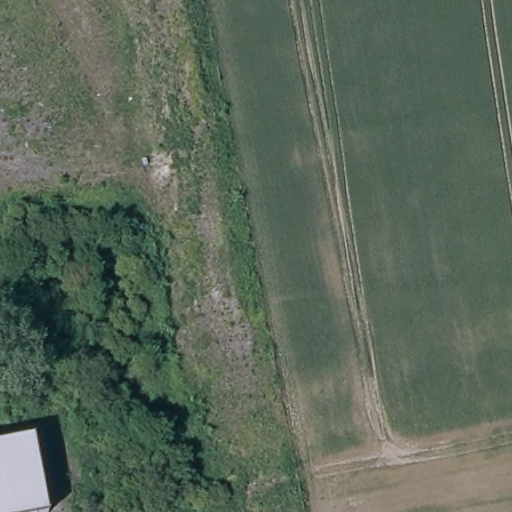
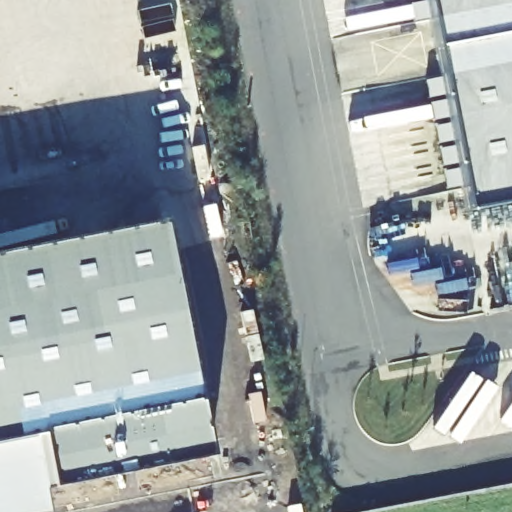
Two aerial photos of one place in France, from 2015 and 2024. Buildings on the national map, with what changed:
new [(512,0),(512,203),(465,212),(425,0),(512,0)]
new [(210,458),(45,491),(34,437),(0,443),(0,254),(164,222),(210,458)]
unchanged [(49,512),(0,512),(0,443),(34,437),(49,512)]

